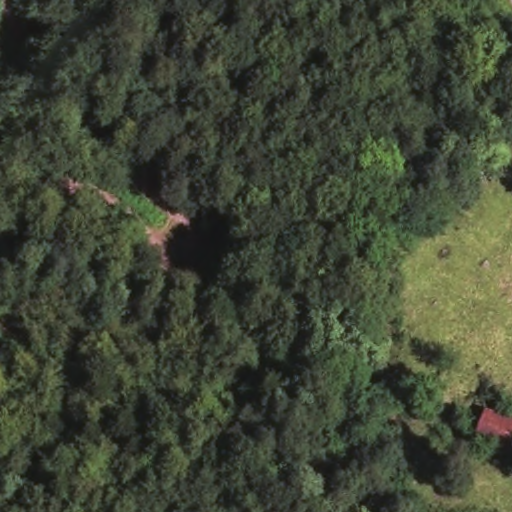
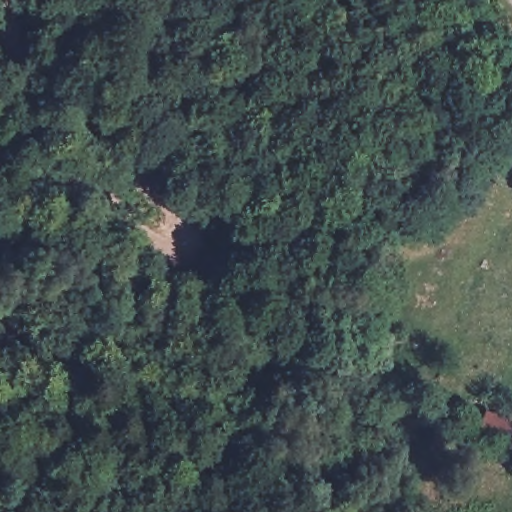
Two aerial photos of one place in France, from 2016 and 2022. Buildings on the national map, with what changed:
unchanged [(474,440),(486,407),(499,411),(512,416),(512,442),(509,452),(474,440)]

